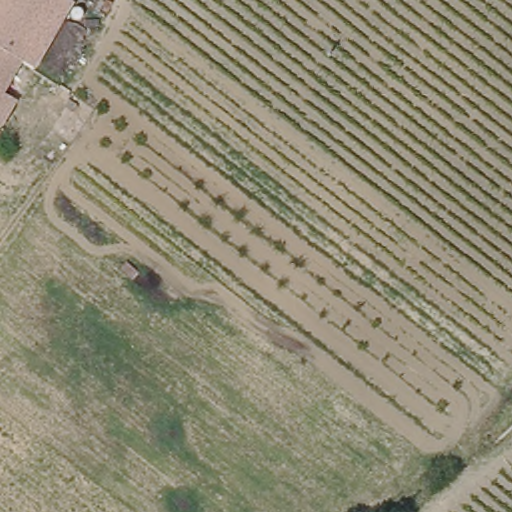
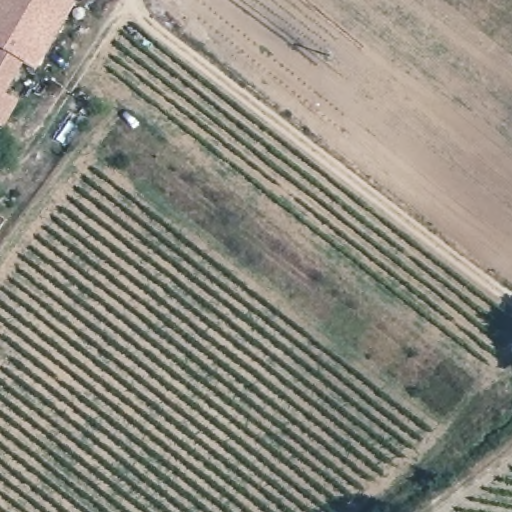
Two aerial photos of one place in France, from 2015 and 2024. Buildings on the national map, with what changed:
unchanged [(0,131),(0,0),(62,0),(73,6),(35,73),(21,65),(3,97),(16,104),(0,131)]

